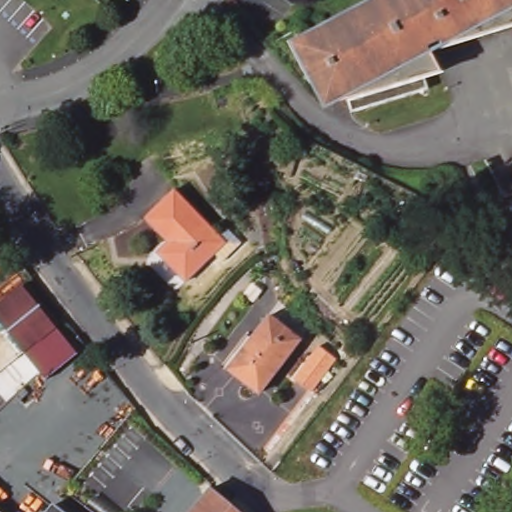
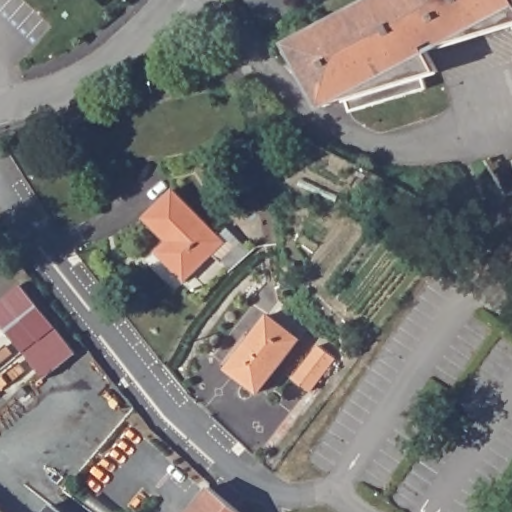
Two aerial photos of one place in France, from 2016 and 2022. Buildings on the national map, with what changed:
unchanged [(444,34),(442,27),(428,31),(436,58),(422,61),(425,74),(354,110),(347,97),(337,101),(322,76),(312,81),(292,41),(370,0),(512,0),(512,14),(444,34)]
unchanged [(255,145),(260,161),(261,165),(263,174),(249,178),(241,149),(255,145)]
unchanged [(155,199),(170,184),(214,230),(223,223),(237,237),(217,255),(210,247),(180,274),(156,249),(167,239),(142,212),(155,199)]
unchanged [(430,215),(442,220),(436,234),(427,229),(428,226),(426,224),(430,215)]
unchanged [(0,324),(0,301),(20,284),(77,354),(46,379),(0,324)]
unchanged [(265,315),(295,339),(252,391),(224,368),(265,315)]
unchanged [(316,350),(327,359),(307,384),(296,375),(316,350)]
unchanged [(205,482),(207,483),(241,512),(180,512),(205,482)]
unchanged [(52,501),(67,512),(44,512),(52,501)]

